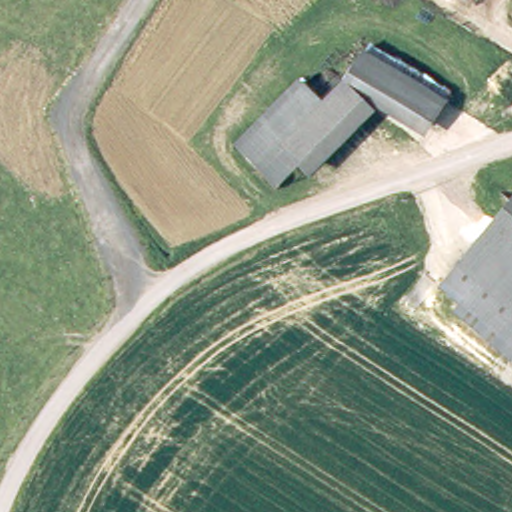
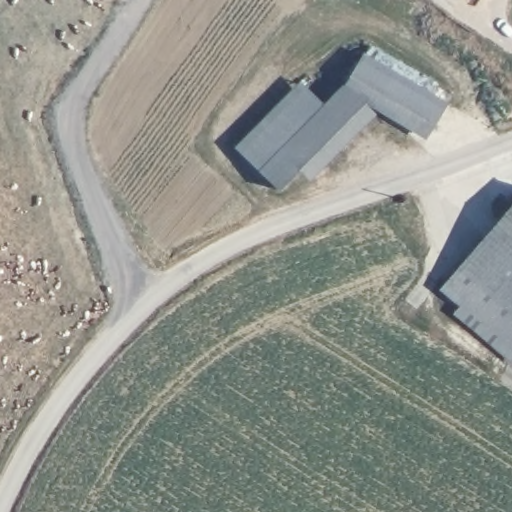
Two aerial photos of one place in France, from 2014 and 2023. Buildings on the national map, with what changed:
unchanged [(374,60),(455,110),(435,145),(380,108),(353,90),(374,60)]
unchanged [(288,195),(246,153),(310,89),(332,110),(353,90),(380,108),(288,195)]
unchanged [(512,206),(512,346),(443,287),(512,206)]

